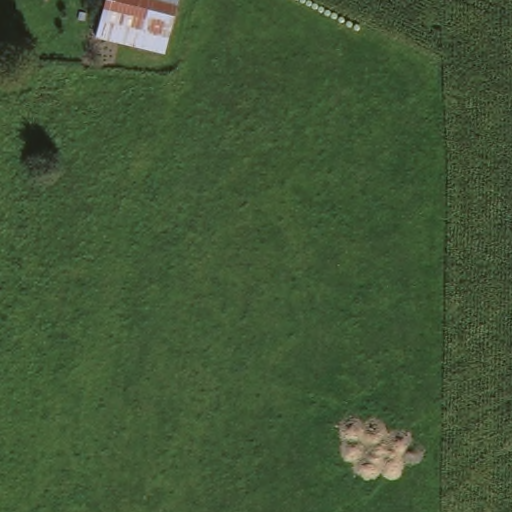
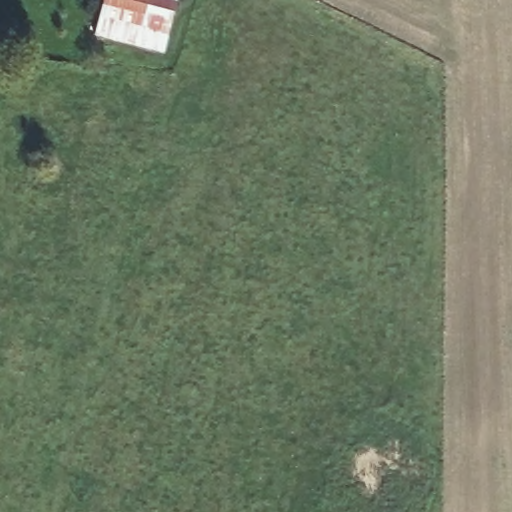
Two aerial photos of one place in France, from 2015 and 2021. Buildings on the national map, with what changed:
unchanged [(108,0),(177,0),(164,54),(99,38),(108,0)]

